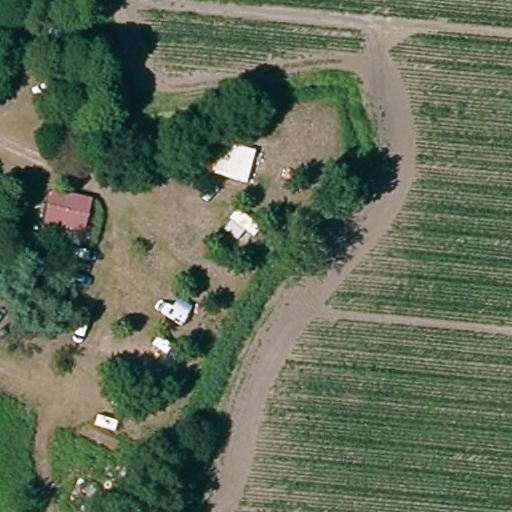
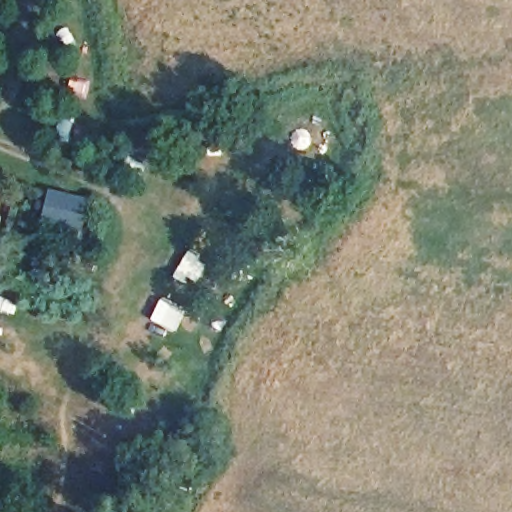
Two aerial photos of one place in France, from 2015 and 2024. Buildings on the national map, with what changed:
unchanged [(34,221),(41,193),(76,202),(69,229),(34,221)]

